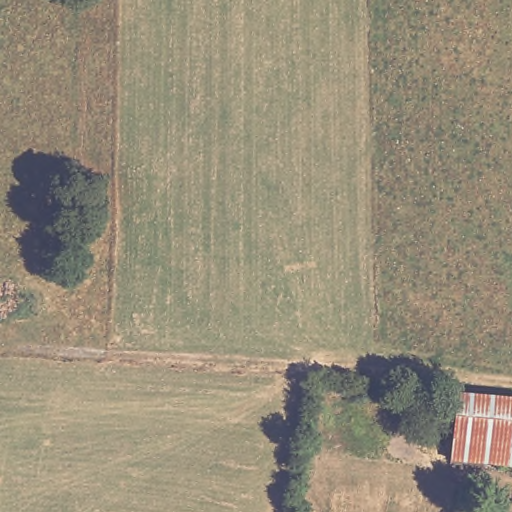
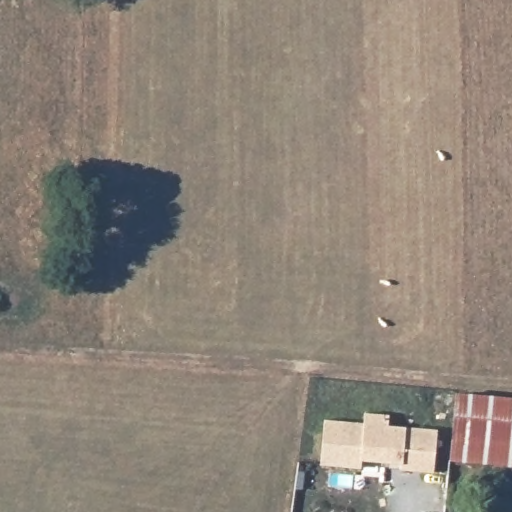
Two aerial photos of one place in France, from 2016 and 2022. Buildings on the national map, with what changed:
unchanged [(454,465),(457,396),(512,400),(512,467),(454,465)]
new [(326,420),(365,424),(366,413),(390,416),(389,426),(438,431),(434,473),(401,470),(402,463),(363,460),(362,468),(322,465),(326,420)]

